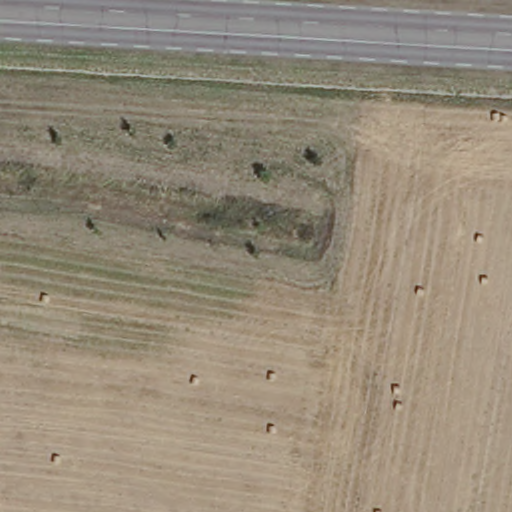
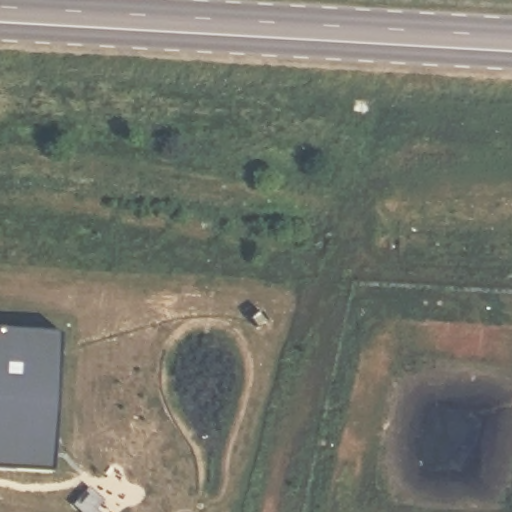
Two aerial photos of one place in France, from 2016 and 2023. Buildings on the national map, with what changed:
new [(75,334),(66,469),(0,467),(0,329),(75,334)]

